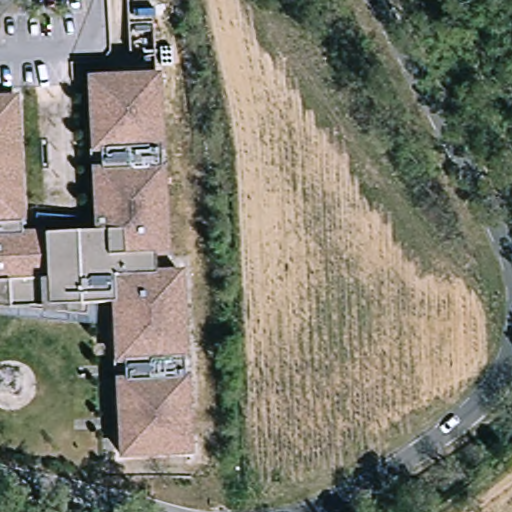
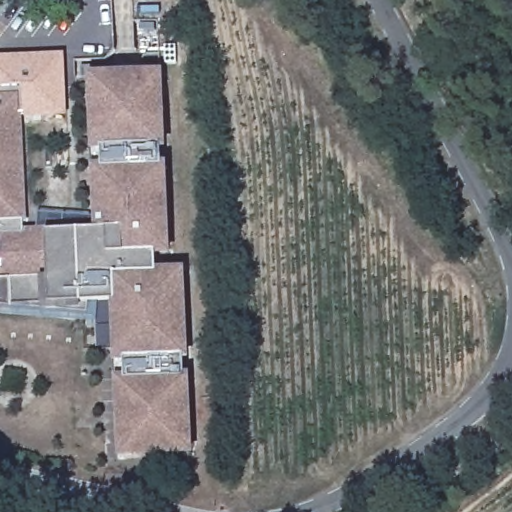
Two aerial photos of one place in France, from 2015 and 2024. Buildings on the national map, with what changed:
new [(22,117),(21,98),(0,99),(0,56),(66,52),(67,115),(22,117)]
unchanged [(21,98),(28,234),(103,231),(95,81),(163,77),(166,149),(164,149),(165,169),(167,169),(172,254),(160,255),(161,274),(186,273),(190,358),(188,359),(189,379),(191,379),(195,453),(127,457),(123,382),(130,382),(129,361),(122,362),(119,303),(15,309),(13,283),(0,284),(0,99),(21,98)]

